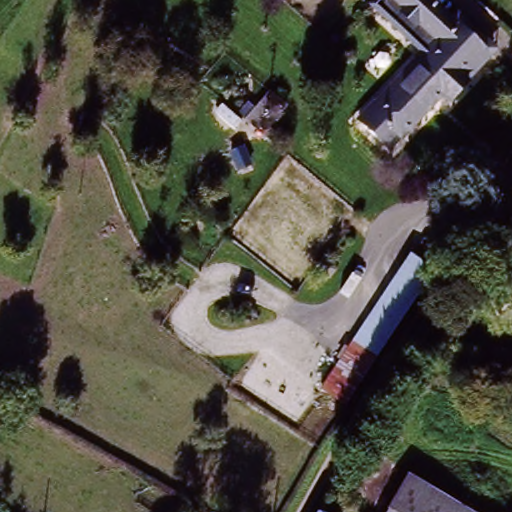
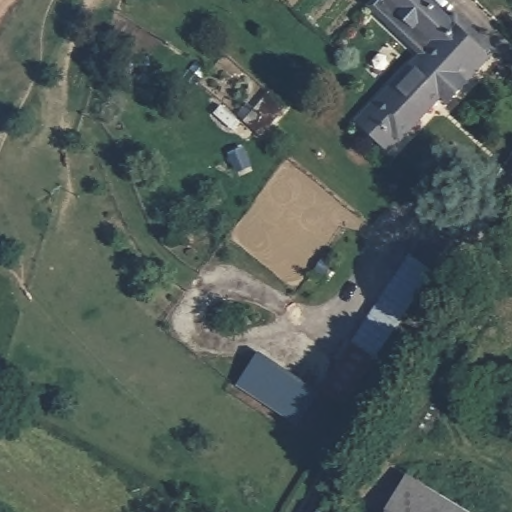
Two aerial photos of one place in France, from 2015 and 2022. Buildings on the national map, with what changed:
unchanged [(357,128),(369,115),(430,52),(437,45),(388,0),(431,0),(445,14),(452,8),(495,49),(444,101),(438,95),(395,140),(383,154),(357,128)]
unchanged [(298,98),(275,128),(257,113),(279,84),(298,98)]
unchanged [(322,383),(380,299),(391,307),(415,270),(428,279),(404,315),(347,400),(322,383)]
new [(321,392),(300,425),(237,384),(257,353),(321,392)]
unchanged [(475,512),(399,512),(422,478),(475,512)]

